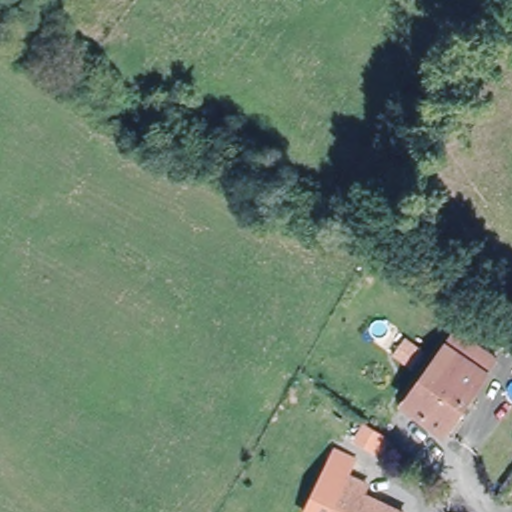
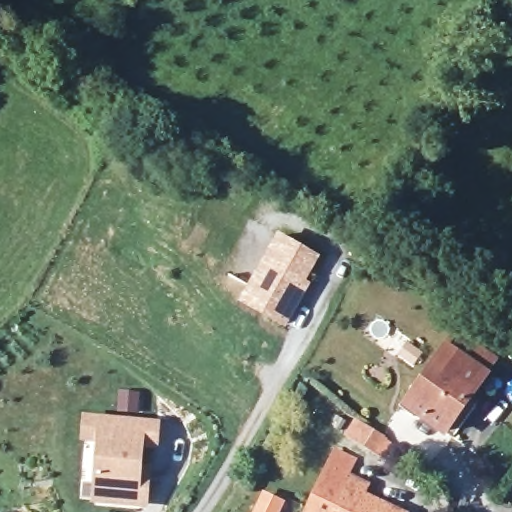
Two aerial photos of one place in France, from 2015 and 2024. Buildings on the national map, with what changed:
new [(268,235),(306,255),(293,280),(298,282),(290,296),(277,323),(256,312),(234,301),(241,288),(268,235)]
unchanged [(445,430),(418,412),(406,403),(421,382),(455,333),(493,359),(484,371),(486,372),(445,430)]
new [(159,446),(144,446),(143,465),(151,466),(148,506),(92,502),(96,442),(82,441),(83,413),(159,419),(159,446)]
unchanged [(327,461),(328,458),(329,458),(346,466),(340,481),(366,492),(361,504),(384,512),(305,512),(327,461)]

